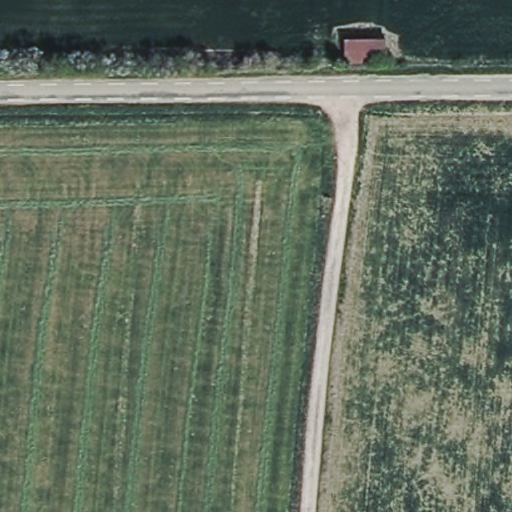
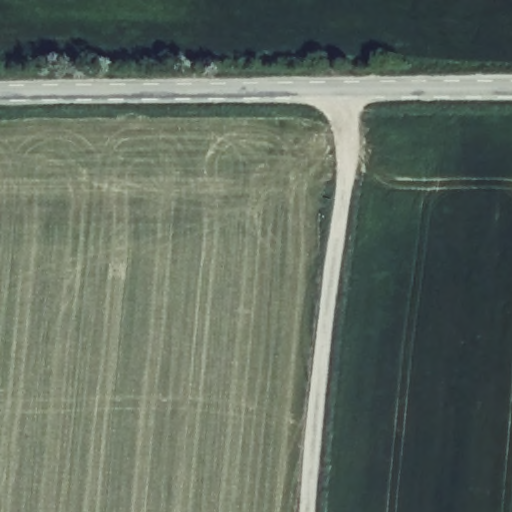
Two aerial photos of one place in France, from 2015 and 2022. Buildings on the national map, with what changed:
unchanged [(390,37),(391,59),(346,59),(342,40),(390,37)]

